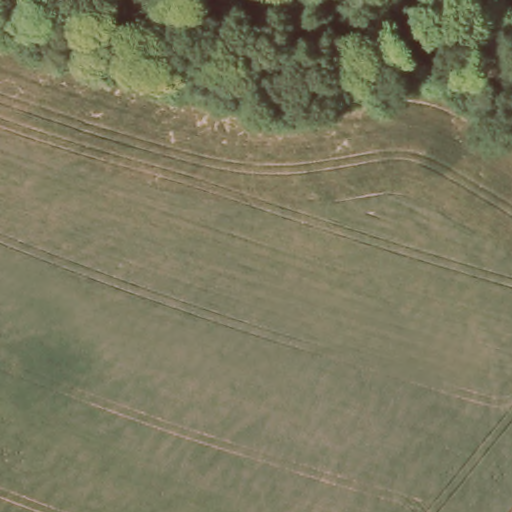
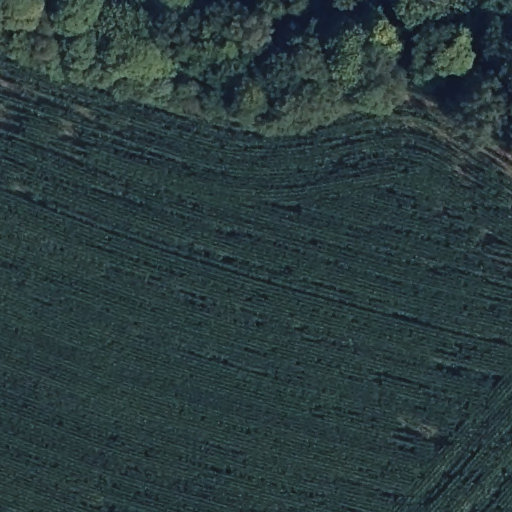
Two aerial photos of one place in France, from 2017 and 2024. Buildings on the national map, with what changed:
unchanged [(417,82),(415,69),(412,58),(448,52),(452,76),(417,82)]

